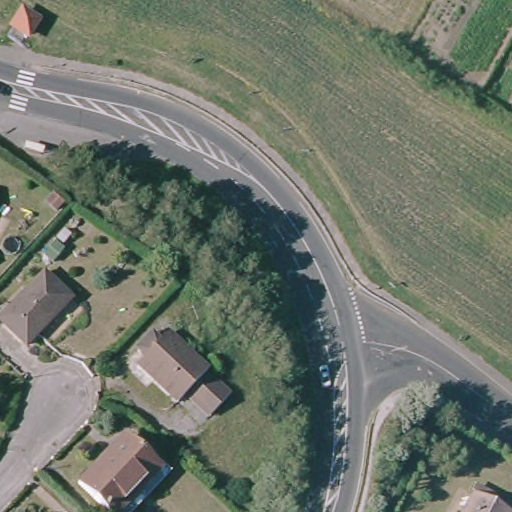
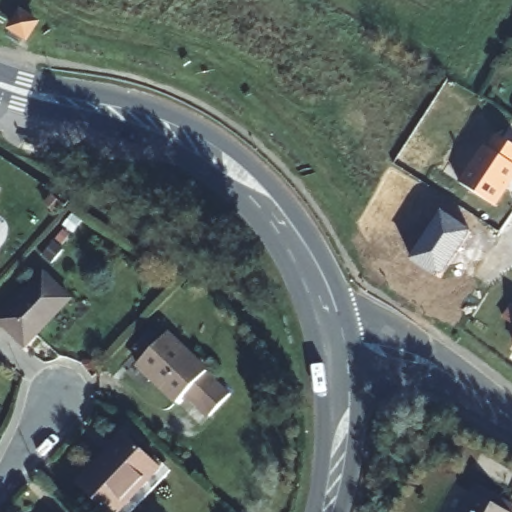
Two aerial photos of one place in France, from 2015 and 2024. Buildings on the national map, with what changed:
new [(38,26),(28,45),(7,31),(20,12),(38,26)]
new [(483,145),(487,148),(496,134),(512,144),(512,183),(497,207),(459,182),(483,145)]
new [(410,261),(441,212),(472,232),(441,280),(410,261)]
unchanged [(65,293),(22,337),(0,315),(0,311),(41,270),(65,293)]
unchanged [(153,325),(161,332),(168,326),(229,386),(209,405),(183,380),(175,388),(140,353),(146,346),(138,336),(153,325)]
unchanged [(119,436),(151,466),(105,512),(103,512),(70,478),(96,453),(99,455),(119,436)]
unchanged [(497,490),(512,498),(512,507),(511,509),(509,512),(459,512),(476,479),(497,490)]

